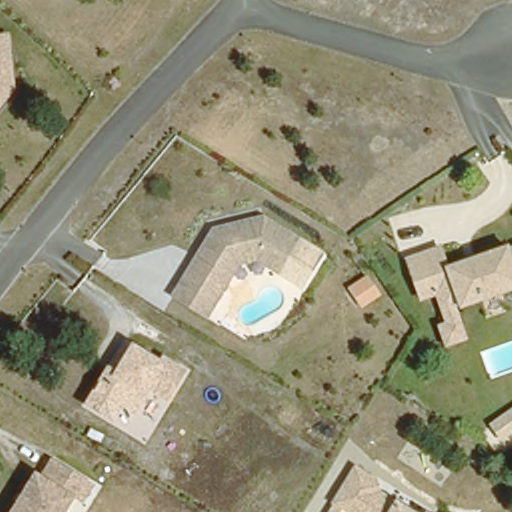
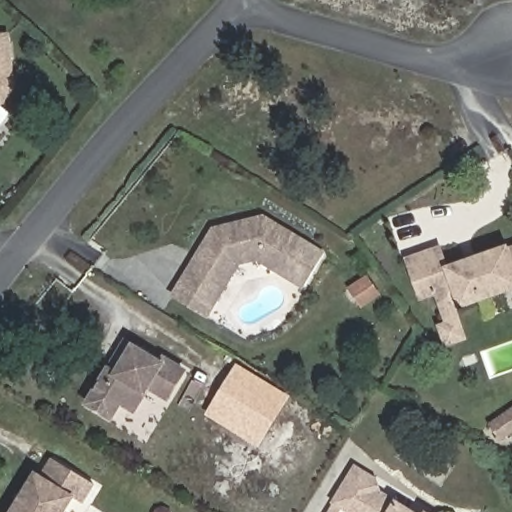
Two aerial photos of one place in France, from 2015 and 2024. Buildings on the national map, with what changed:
unchanged [(0,107),(0,39),(7,38),(14,90),(1,107),(0,107)]
unchanged [(176,287),(184,275),(217,222),(232,219),(256,214),(267,211),(322,246),(301,280),(260,253),(242,257),(217,296),(209,308),(176,287)]
unchanged [(440,243),(447,264),(512,243),(512,294),(462,309),(469,342),(442,347),(436,321),(440,319),(434,294),(414,301),(402,254),(440,243)]
unchanged [(123,341),(131,345),(158,362),(161,357),(181,370),(165,396),(146,385),(131,408),(117,400),(107,415),(85,401),(107,367),(123,341)]
new [(204,415),(236,363),(290,396),(258,448),(204,415)]
unchanged [(76,501),(67,496),(58,512),(4,512),(30,471),(36,475),(47,457),(87,482),(76,501)]
unchanged [(337,506),(330,501),(349,469),(367,480),(371,491),(406,512),(347,512),(337,506)]
unchanged [(330,501),(337,506),(333,512),(323,512),(330,501)]

